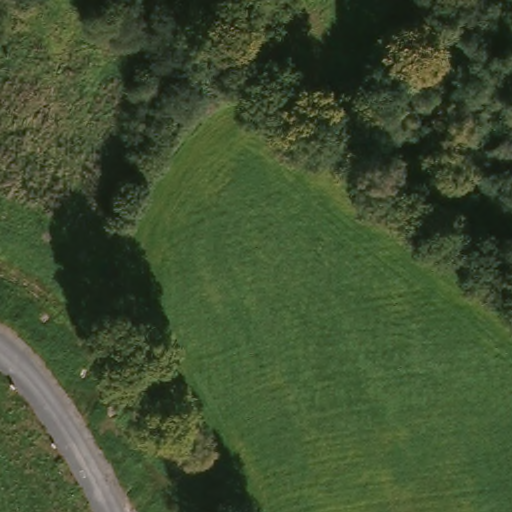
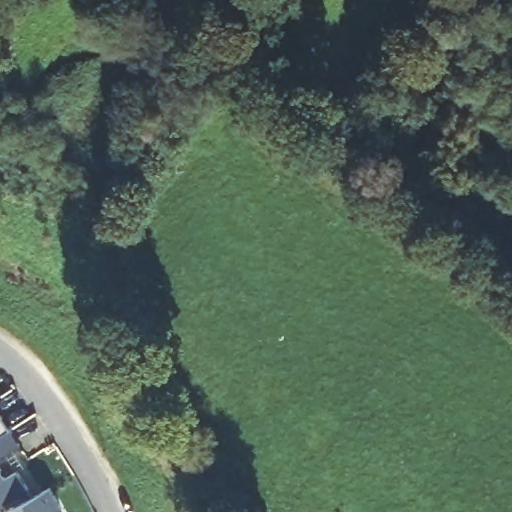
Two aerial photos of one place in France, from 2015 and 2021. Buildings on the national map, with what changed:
new [(21,448),(0,461),(0,440),(12,433),(21,448)]
new [(18,473),(30,492),(0,511),(0,471),(6,481),(18,473)]
new [(62,510),(59,512),(11,512),(51,490),(62,510)]

